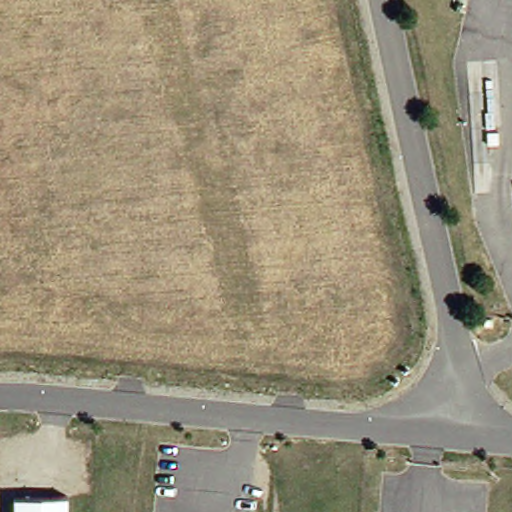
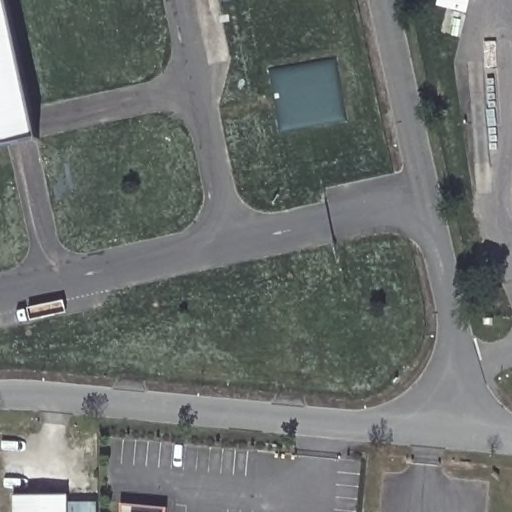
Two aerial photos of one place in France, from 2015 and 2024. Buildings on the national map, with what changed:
new [(38,144),(0,151),(0,0),(7,0),(38,144)]
unchanged [(69,512),(14,512),(14,497),(69,496),(69,512)]
new [(98,502),(98,512),(69,512),(69,502),(98,502)]
new [(168,508),(168,512),(121,512),(121,504),(168,508)]

